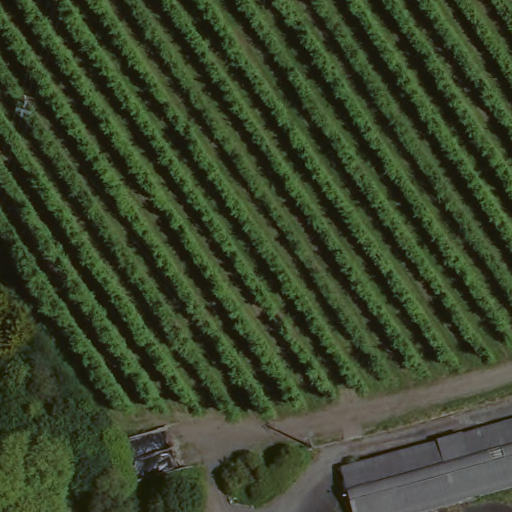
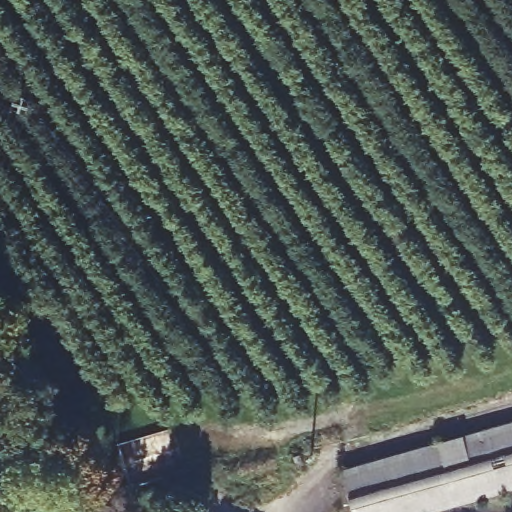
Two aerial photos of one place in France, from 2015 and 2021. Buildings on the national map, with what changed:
unchanged [(512,489),(424,512),(357,512),(345,472),(512,427),(512,489)]

